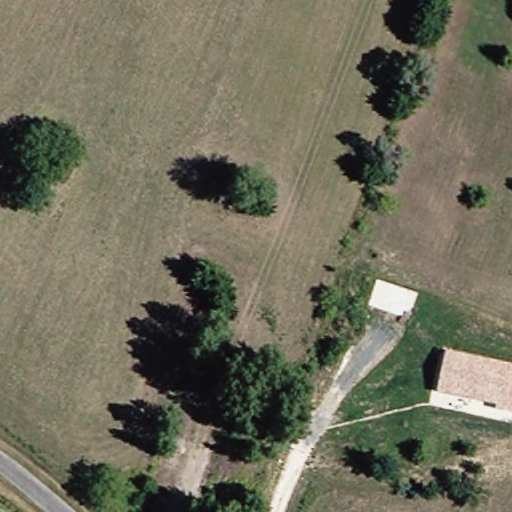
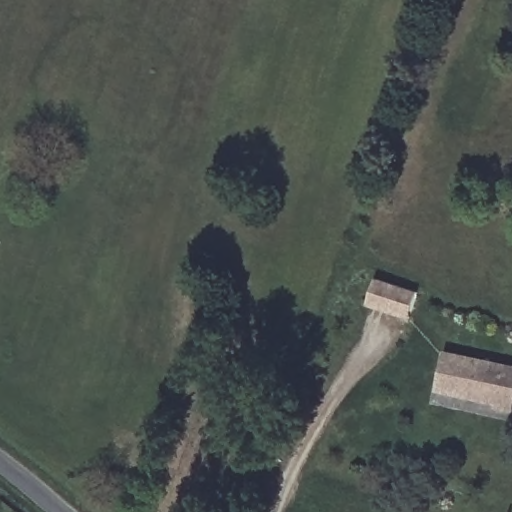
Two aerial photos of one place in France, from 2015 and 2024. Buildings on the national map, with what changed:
new [(375,281),(416,293),(410,315),(389,308),(388,313),(367,307),(375,281)]
unchanged [(512,414),(495,412),(495,406),(437,395),(446,352),(512,366),(512,414)]

